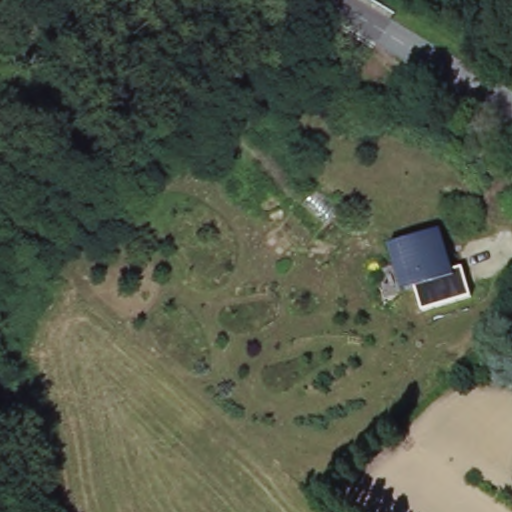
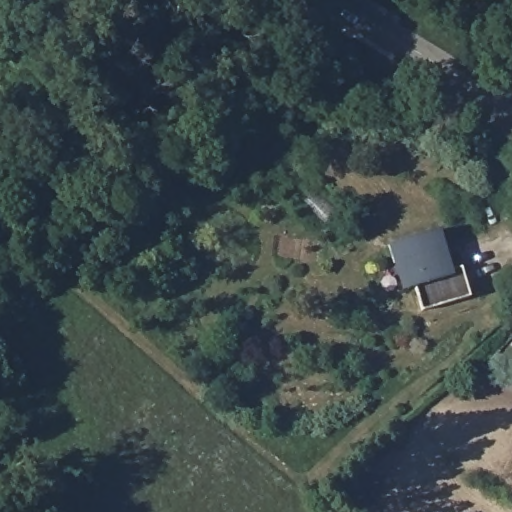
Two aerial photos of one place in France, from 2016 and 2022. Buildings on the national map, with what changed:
unchanged [(417,284),(402,287),(391,243),(442,229),(455,270),(464,267),(472,296),(424,311),(417,284)]

